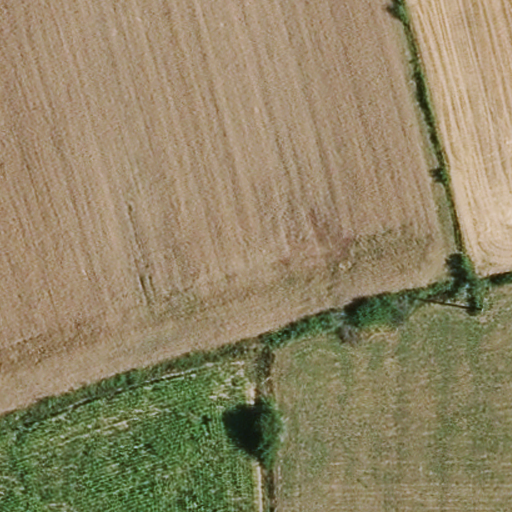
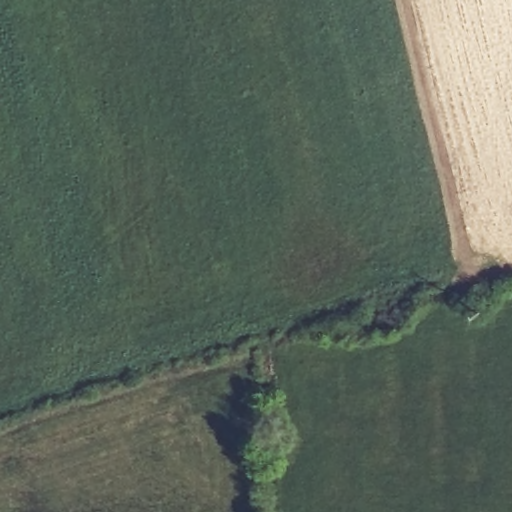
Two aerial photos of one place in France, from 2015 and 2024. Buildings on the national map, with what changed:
[]

